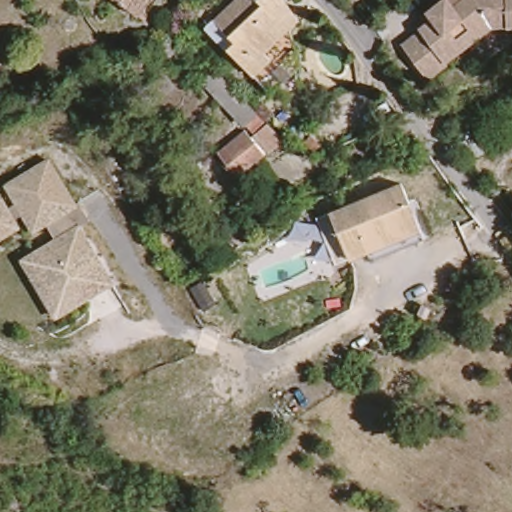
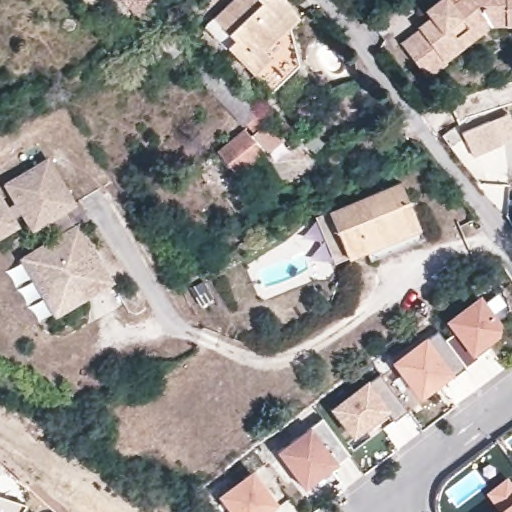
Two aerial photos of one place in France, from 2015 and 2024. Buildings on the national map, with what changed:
unchanged [(128,4),(122,0),(130,0),(128,4)]
unchanged [(136,0),(148,0),(145,6),(136,0)]
unchanged [(299,15),(291,24),(300,62),(273,88),(250,67),(235,50),(228,44),(234,37),(215,16),(227,5),(231,0),(287,0),(299,15)]
unchanged [(465,41),(447,55),(447,57),(429,69),(405,39),(422,24),(420,21),(432,12),(427,3),(431,0),(512,0),(512,20),(507,20),(507,18),(492,19),(465,41)]
unchanged [(174,30),(185,47),(172,56),(160,40),(174,30)]
unchanged [(227,84),(247,105),(252,111),(240,123),(235,116),(217,97),(192,70),(202,59),(227,84)]
unchanged [(164,68),(177,85),(159,97),(147,82),(164,68)]
unchanged [(491,120),(503,142),(472,156),(458,134),(491,120)]
unchanged [(279,138),(232,172),(212,151),(240,127),(246,136),(263,122),(279,138)]
unchanged [(78,226),(113,287),(51,320),(18,261),(53,241),(42,217),(0,242),(0,184),(45,157),(85,221),(78,226)]
unchanged [(367,245),(350,251),(331,206),(402,177),(412,199),(402,202),(415,236),(387,247),(370,254),(367,245)]
new [(460,332),(452,322),(482,300),(502,327),(501,333),(476,352),(482,358),(468,368),(447,341),(460,332)]
new [(422,336),(447,369),(417,391),(392,358),(422,336)]
new [(382,373),(409,411),(374,437),(366,426),(355,434),(335,408),(382,373)]
new [(325,420),(352,456),(307,489),(280,453),(325,420)]
new [(27,491),(22,499),(25,501),(17,512),(0,512),(0,462),(23,483),(27,491)]
new [(270,512),(230,512),(219,496),(253,470),(280,505),(270,512)]
new [(508,482),(512,487),(512,512),(505,512),(492,494),(508,482)]

